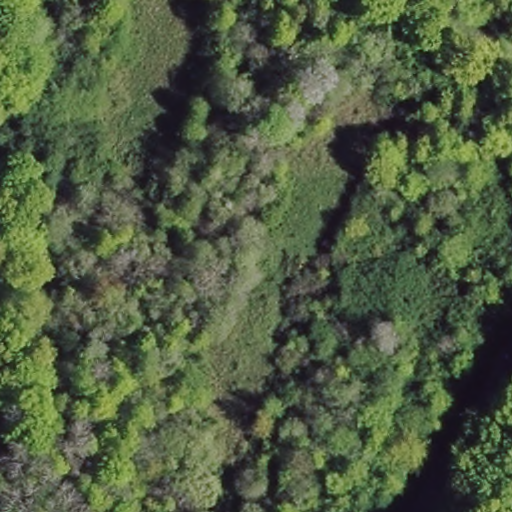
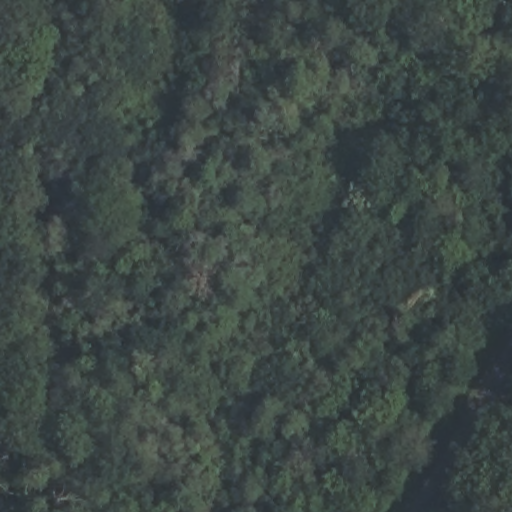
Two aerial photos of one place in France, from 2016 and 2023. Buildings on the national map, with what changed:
unchanged [(54,212),(48,164),(70,165),(74,212),(54,212)]

